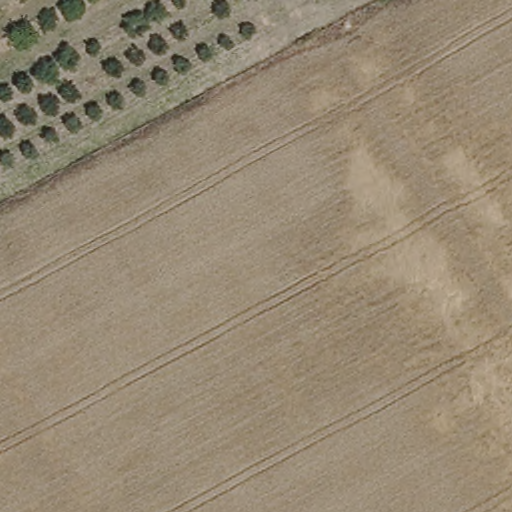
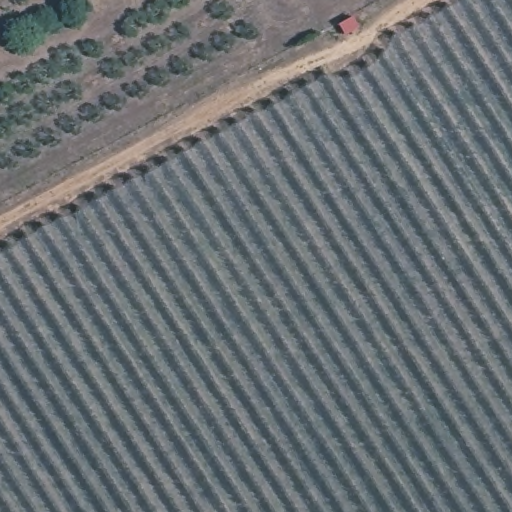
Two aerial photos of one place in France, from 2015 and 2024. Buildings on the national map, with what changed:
[]

